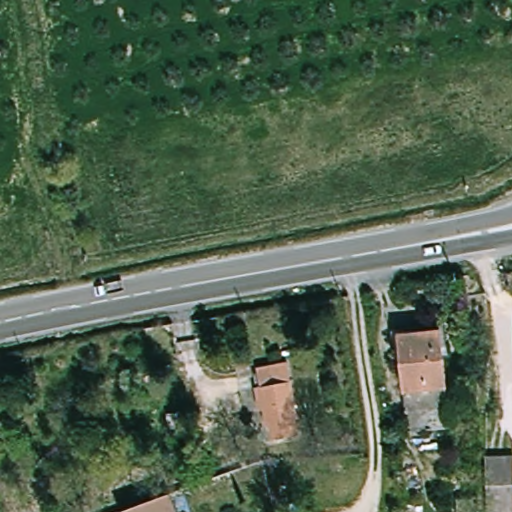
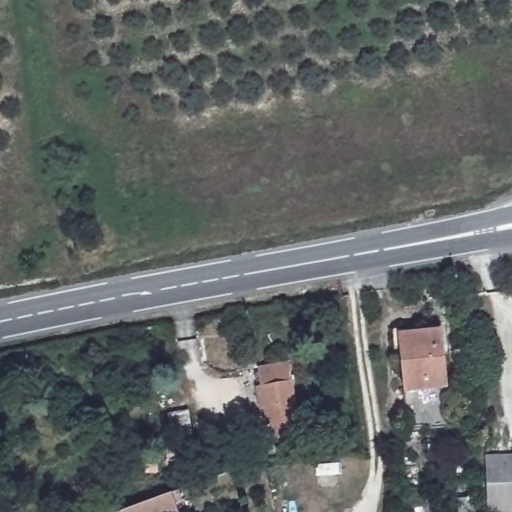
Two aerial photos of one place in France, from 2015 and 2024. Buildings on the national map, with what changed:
unchanged [(455,421),(412,425),(402,328),(445,325),(455,421)]
unchanged [(295,420),(298,435),(273,440),(271,423),(267,424),(264,408),(260,408),(256,386),(261,385),(258,368),(288,363),(298,419),(295,420)]
unchanged [(195,437),(169,441),(164,413),(190,408),(195,437)]
unchanged [(512,512),(487,512),(485,455),(512,454),(512,512)]
unchanged [(178,512),(121,512),(171,495),(178,512)]
unchanged [(462,512),(462,506),(477,505),(477,512),(462,512)]

